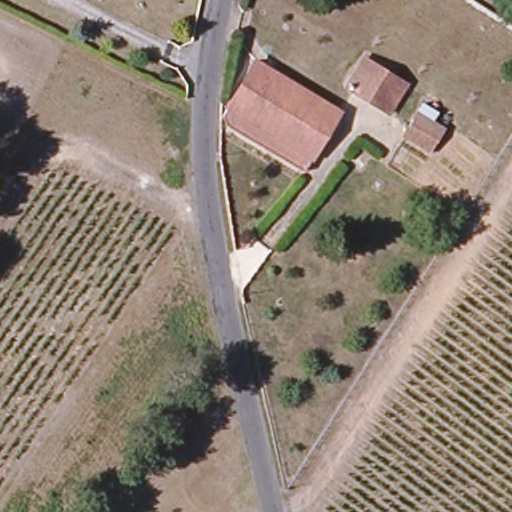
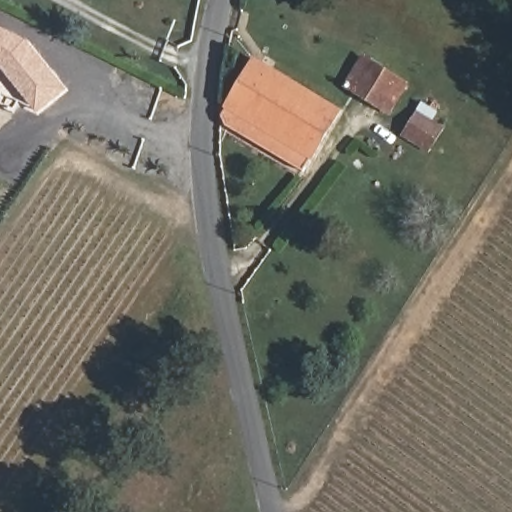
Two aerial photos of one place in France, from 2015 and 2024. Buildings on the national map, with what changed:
new [(27,41),(67,91),(39,114),(0,66),(0,27),(27,41)]
unchanged [(387,112),(345,85),(362,59),(405,86),(387,112)]
unchanged [(229,107),(255,61),(301,90),(298,96),(338,119),(311,158),(229,107)]
unchanged [(306,167),(224,117),(229,107),(311,158),(306,167)]
unchanged [(445,131),(430,152),(405,134),(420,113),(445,131)]

